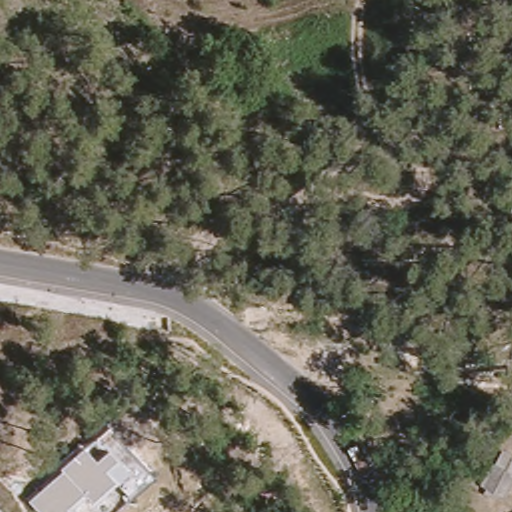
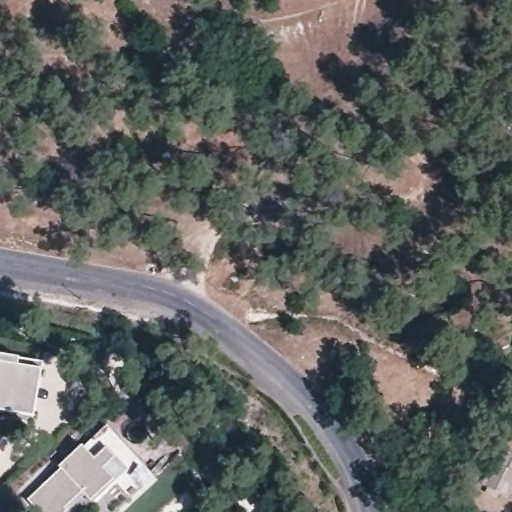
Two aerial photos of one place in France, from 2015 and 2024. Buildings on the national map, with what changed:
new [(1,358),(25,362),(25,368),(48,372),(40,419),(0,411),(0,364),(1,358)]
unchanged [(59,467),(83,445),(107,428),(153,477),(132,498),(115,480),(91,503),(85,496),(66,512),(38,512),(27,501),(62,470),(59,467)]

